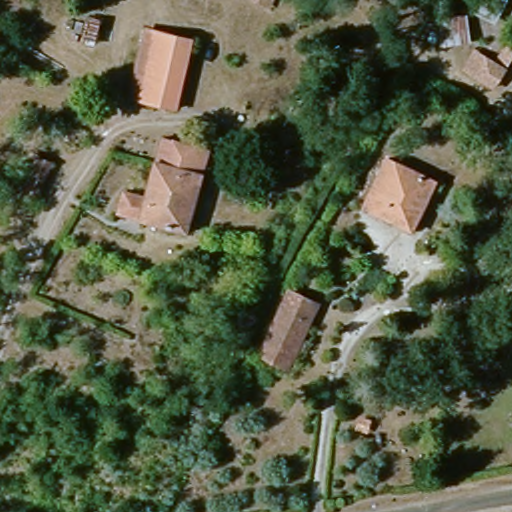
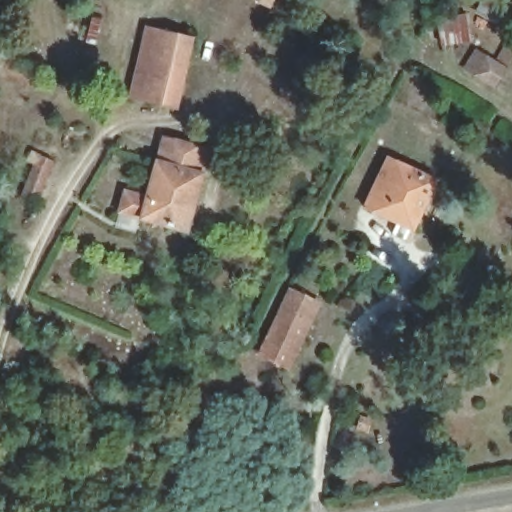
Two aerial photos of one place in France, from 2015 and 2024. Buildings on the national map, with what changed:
unchanged [(476,41),(438,44),(440,13),(463,11),(469,0),(509,0),(499,23),(477,12),(476,41)]
unchanged [(131,85),(147,25),(154,26),(189,35),(172,103),(128,94),(131,85)]
unchanged [(465,67),(475,47),(497,57),(512,32),(512,65),(501,85),(465,67)]
unchanged [(127,185),(154,194),(163,162),(173,133),(218,148),(189,230),(146,218),(121,210),(127,185)]
unchanged [(391,156),(438,178),(417,226),(370,202),(391,156)]
unchanged [(317,315),(300,359),(271,348),(288,303),(317,315)]

